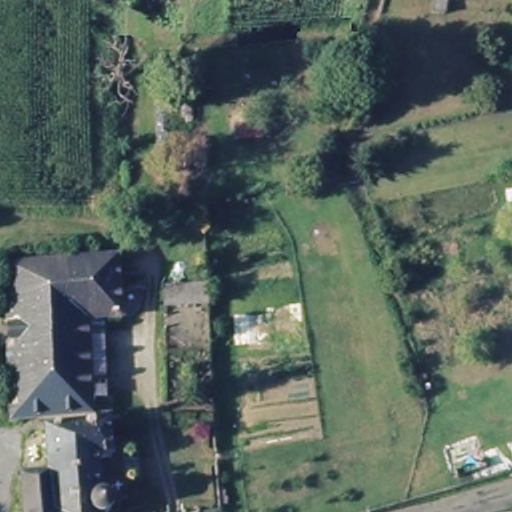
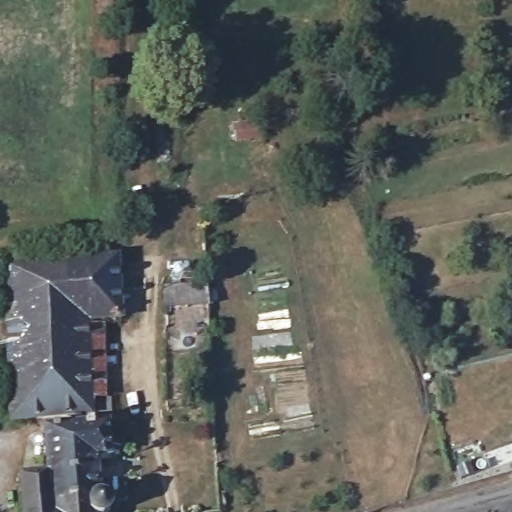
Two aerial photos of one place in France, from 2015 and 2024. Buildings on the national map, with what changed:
unchanged [(6,264),(116,260),(120,322),(86,325),(91,416),(12,420),(6,264)]
unchanged [(47,475),(45,430),(107,426),(109,462),(95,463),(98,501),(99,500),(101,500),(103,501),(104,502),(106,503),(107,504),(108,505),(109,507),(110,509),(110,511),(110,512),(23,512),(21,478),(47,475)]

